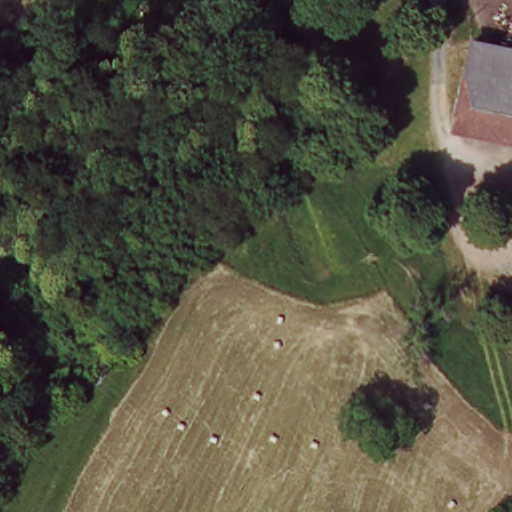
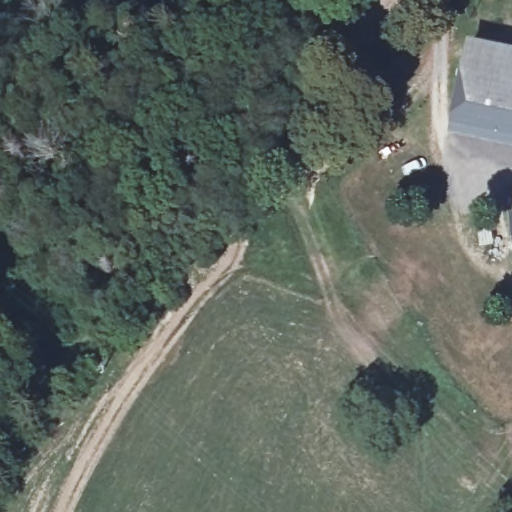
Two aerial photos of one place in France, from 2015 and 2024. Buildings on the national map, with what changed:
unchanged [(471,46),(512,54),(512,66),(469,58),(471,46)]
unchanged [(512,66),(512,141),(454,129),(469,58),(512,66)]

